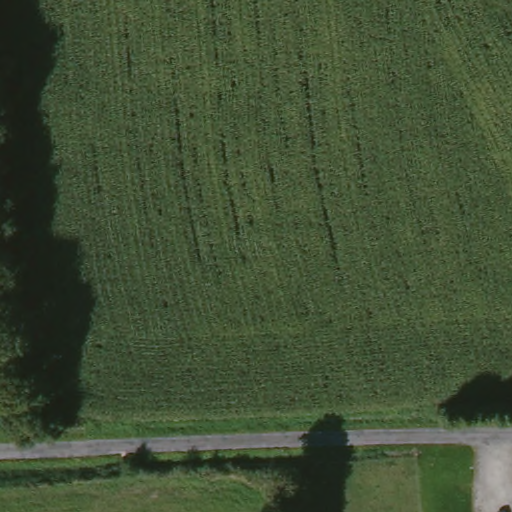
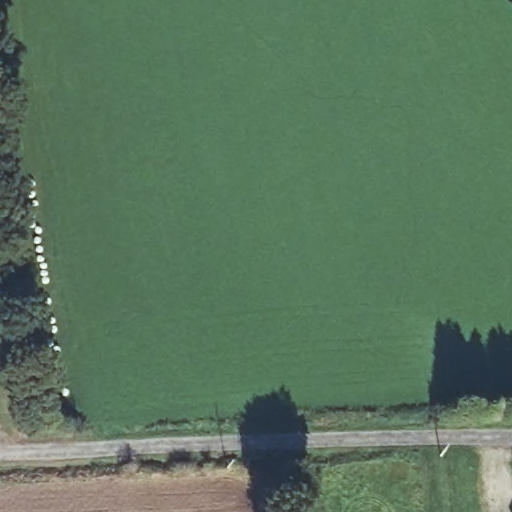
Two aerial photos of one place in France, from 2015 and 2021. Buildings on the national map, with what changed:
[]

